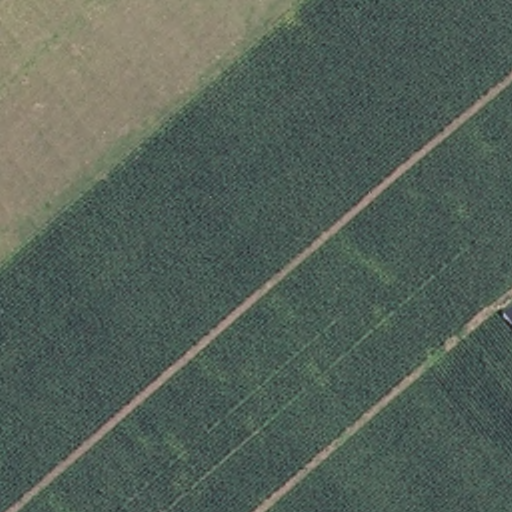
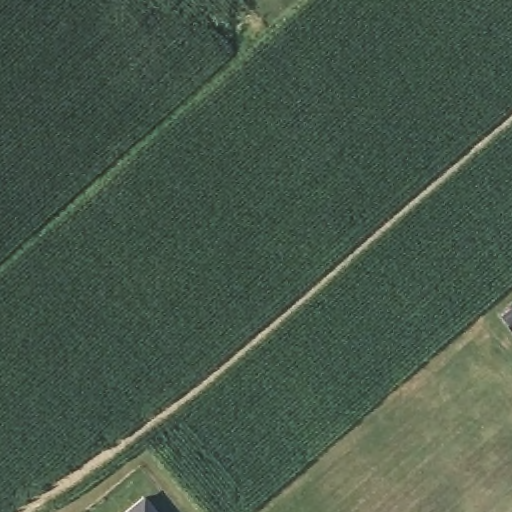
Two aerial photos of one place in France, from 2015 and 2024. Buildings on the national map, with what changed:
new [(143,496),(155,512),(123,512),(143,496)]

